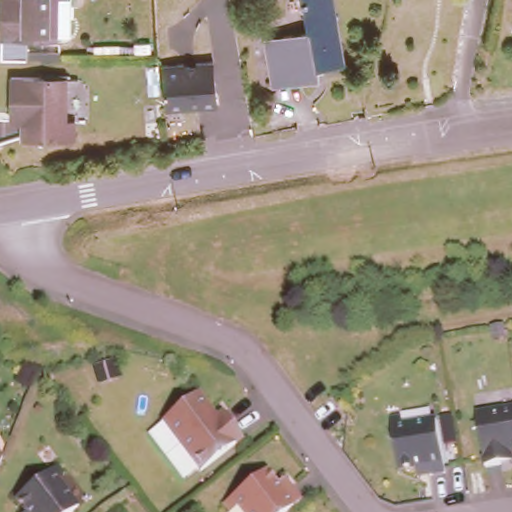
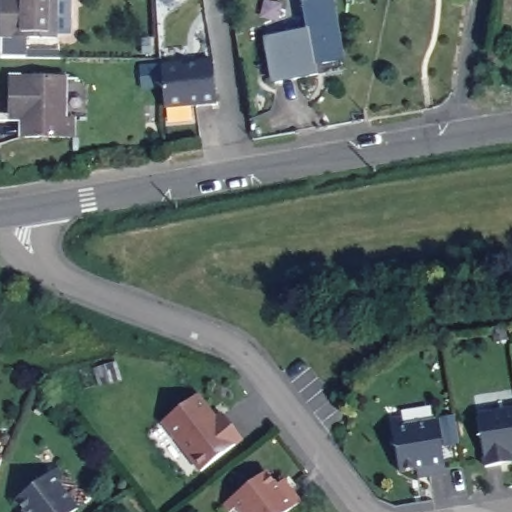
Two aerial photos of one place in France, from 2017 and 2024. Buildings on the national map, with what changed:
unchanged [(70,27),(55,26),(55,34),(0,33),(2,0),(71,0),(70,27)]
unchanged [(315,61),(318,72),(273,78),(265,34),(307,28),(303,0),(332,0),(342,56),(315,61)]
unchanged [(163,107),(161,64),(212,61),(215,104),(163,107)]
unchanged [(15,108),(15,72),(71,73),(70,116),(78,116),(78,134),(26,133),(26,117),(15,117),(15,108)]
unchanged [(503,327),(505,339),(493,341),(491,329),(503,327)]
unchanged [(161,417),(196,391),(215,415),(221,410),(241,435),(200,467),(161,417)]
unchanged [(480,457),(472,407),(512,401),(512,444),(506,445),(508,453),(495,455),(480,457)]
unchanged [(410,465),(393,467),(386,425),(385,414),(406,411),(408,421),(432,417),(440,468),(425,471),(412,473),(410,465)]
unchanged [(1,454),(0,457),(0,454),(1,454)]
unchanged [(270,467),(280,481),(287,475),(295,485),(305,498),(287,512),(250,512),(235,494),(270,467)]
unchanged [(49,474),(77,510),(75,512),(23,512),(15,500),(49,474)]

